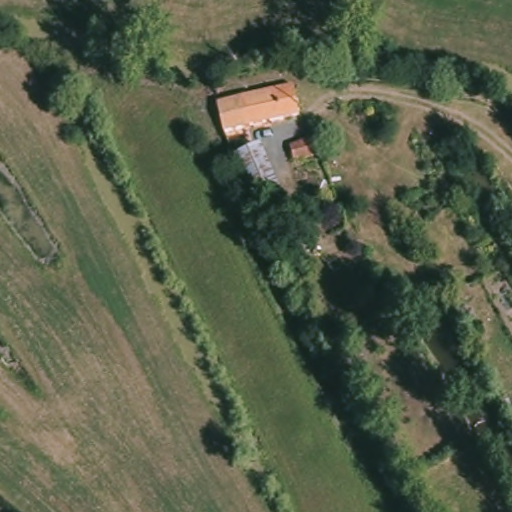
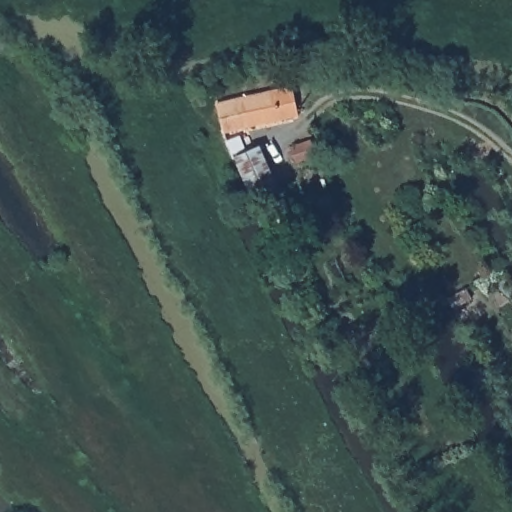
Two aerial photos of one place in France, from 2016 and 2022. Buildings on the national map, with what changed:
unchanged [(291,85),(299,108),(223,128),(218,105),(291,85)]
unchanged [(315,140),(322,155),(303,164),(298,148),(315,140)]
unchanged [(261,141),(286,186),(260,198),(237,151),(261,141)]
unchanged [(283,202),(292,220),(282,223),(277,216),(270,218),(265,211),(283,202)]

